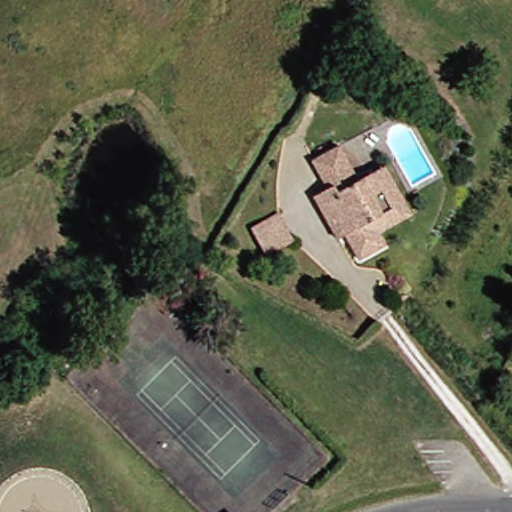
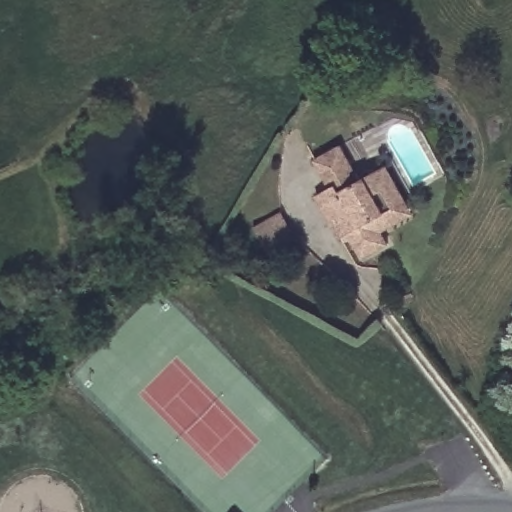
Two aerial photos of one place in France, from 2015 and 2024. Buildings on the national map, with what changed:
unchanged [(336,228),(319,201),(331,192),(314,167),(341,149),(360,182),(375,173),(388,165),(416,207),(405,215),(388,227),(397,242),(371,260),(355,236),(344,242),(336,228)]
unchanged [(314,251),(287,267),(269,240),(296,222),(314,251)]

